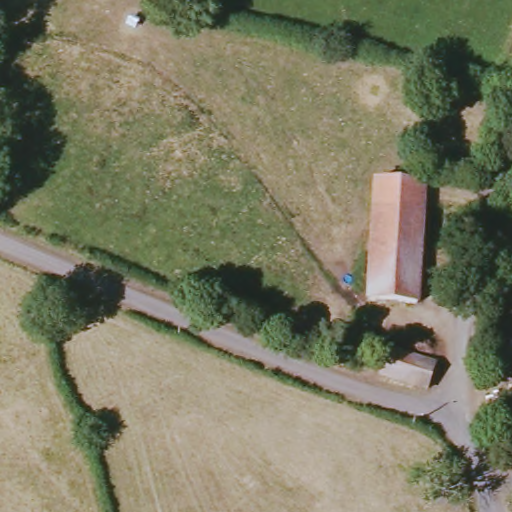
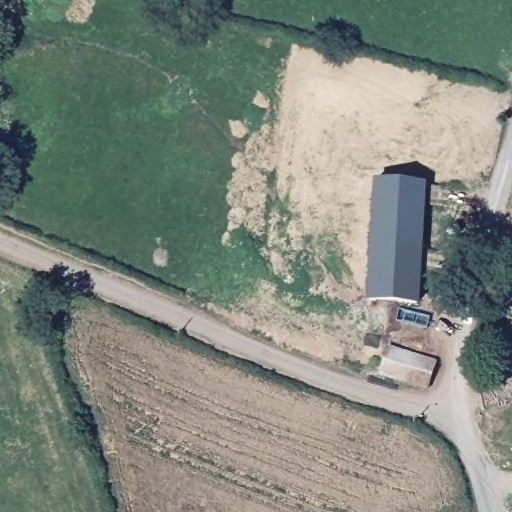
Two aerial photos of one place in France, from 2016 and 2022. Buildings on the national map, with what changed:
unchanged [(367,301),(375,182),(424,185),(420,252),(438,253),(436,273),(419,272),(417,304),(367,301)]
unchanged [(433,384),(385,370),(392,344),(440,358),(433,384)]

